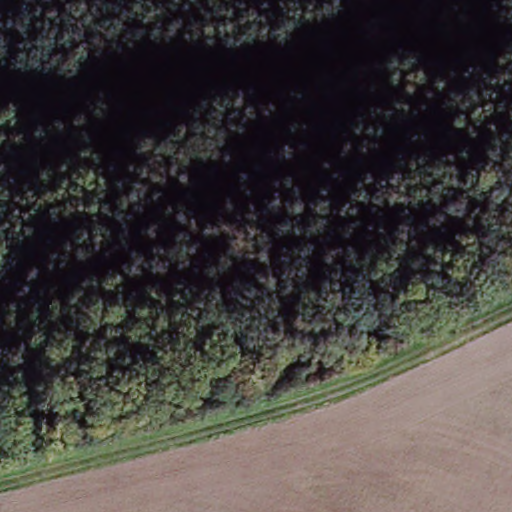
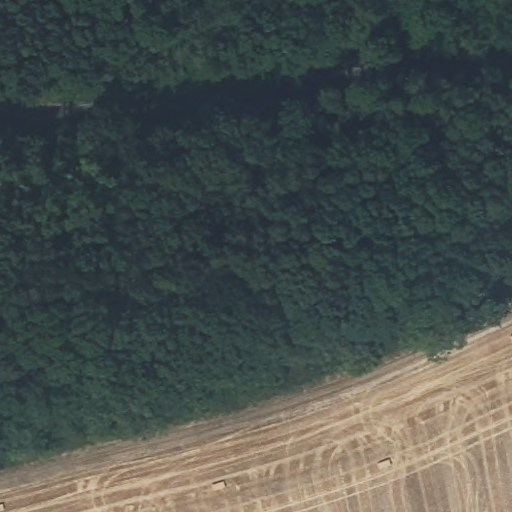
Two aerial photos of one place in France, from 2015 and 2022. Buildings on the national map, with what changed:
[]

